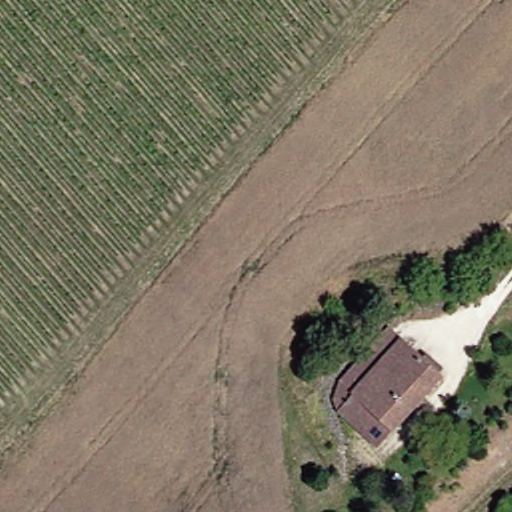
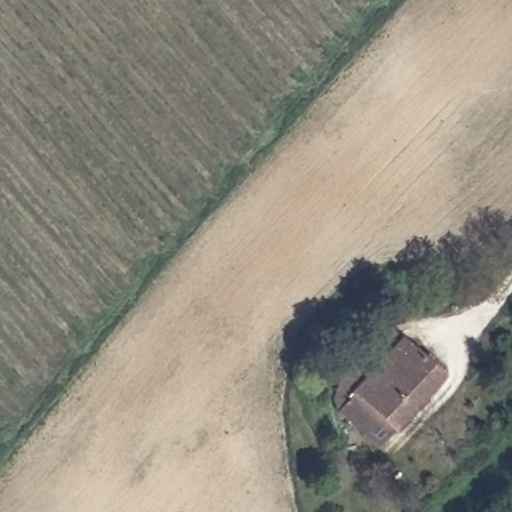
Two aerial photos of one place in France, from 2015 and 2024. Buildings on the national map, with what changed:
unchanged [(396,422),(377,437),(343,405),(343,395),(345,386),(349,376),(396,326),(411,341),(365,388),(396,422)]
unchanged [(396,422),(365,388),(411,341),(449,378),(382,442),(377,437),(396,422)]

